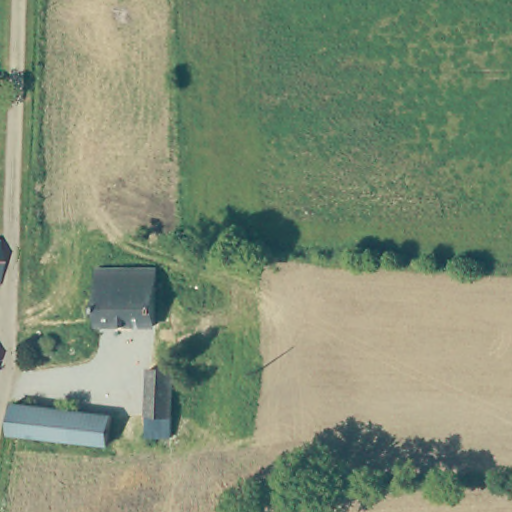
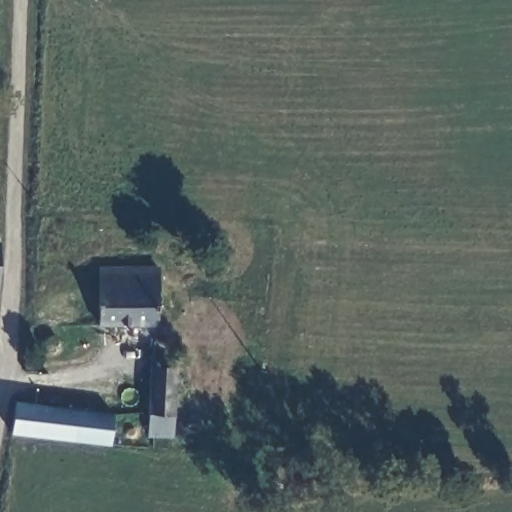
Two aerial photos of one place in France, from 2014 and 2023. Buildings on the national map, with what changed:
unchanged [(1,241),(0,283),(0,241),(1,241)]
unchanged [(147,262),(153,262),(154,316),(97,318),(100,262),(147,262)]
unchanged [(145,431),(152,363),(179,367),(170,434),(165,434),(151,432),(145,431)]
unchanged [(129,408),(124,444),(70,439),(25,435),(29,397),(129,408)]

